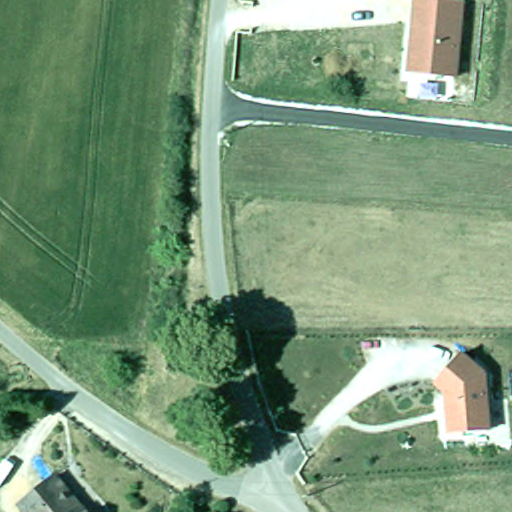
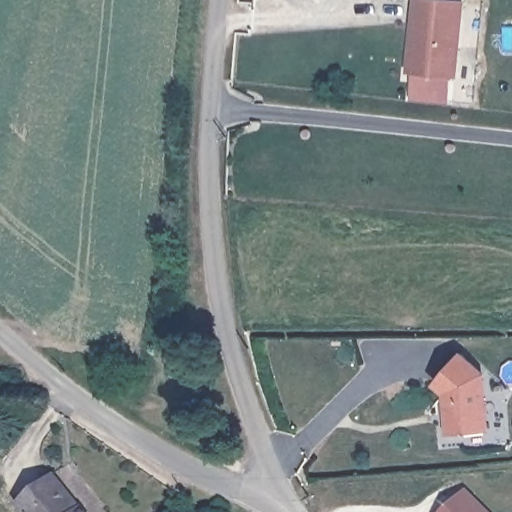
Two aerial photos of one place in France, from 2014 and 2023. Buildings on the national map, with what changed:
unchanged [(419,0),(439,0),(466,2),(459,80),(412,73),(419,0)]
unchanged [(457,432),(455,391),(442,382),(468,352),(491,373),(495,429),(457,432)]
unchanged [(16,496),(51,467),(62,481),(59,484),(76,504),(80,500),(89,512),(32,512),(30,509),(29,511),(16,496)]
new [(490,512),(443,512),(467,487),(490,512)]
unchanged [(29,511),(30,509),(32,512),(27,512),(29,511)]

